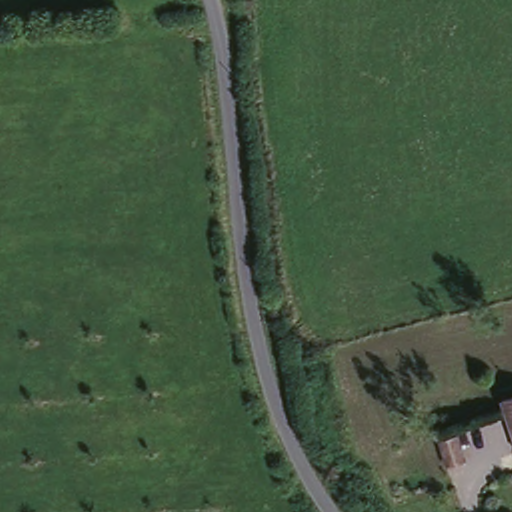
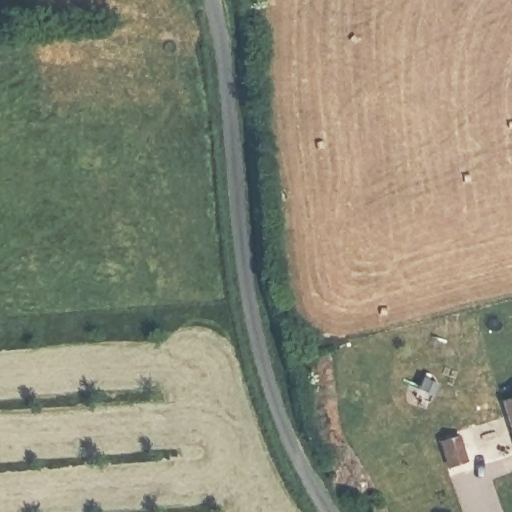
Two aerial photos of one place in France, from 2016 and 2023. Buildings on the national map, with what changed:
unchanged [(502,401),(512,398),(512,441),(502,401)]
unchanged [(459,433),(466,458),(449,463),(442,437),(459,433)]

